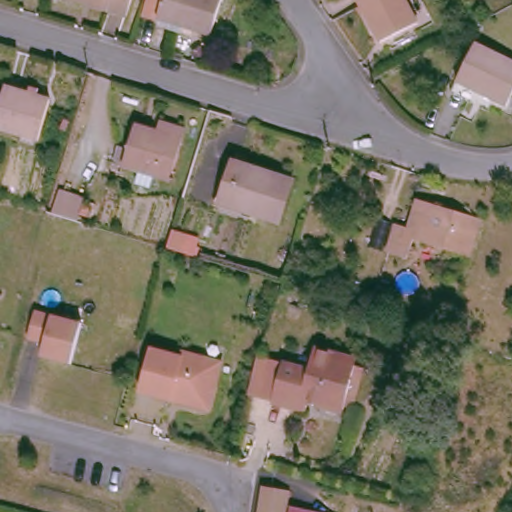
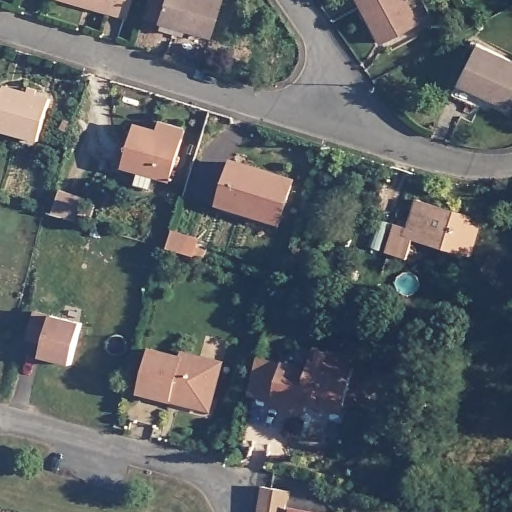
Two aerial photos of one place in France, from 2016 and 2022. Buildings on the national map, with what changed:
unchanged [(75,0),(132,0),(127,17),(75,0)]
unchanged [(149,15),(150,10),(154,0),(227,0),(215,36),(149,15)]
unchanged [(380,42),(358,0),(406,0),(417,22),(380,42)]
unchanged [(512,61),(512,95),(506,107),(457,82),(476,43),(512,61)]
unchanged [(0,130),(0,106),(6,86),(50,99),(38,141),(0,130)]
unchanged [(170,182),(153,177),(149,189),(134,184),(138,172),(122,167),(112,162),(117,145),(128,149),(137,125),(163,134),(167,125),(187,132),(170,182)]
unchanged [(293,181),(280,223),(243,211),(245,206),(222,199),(233,162),(293,181)]
unchanged [(386,252),(395,221),(410,226),(418,195),(448,204),(437,244),(411,236),(405,257),(386,252)]
unchanged [(469,253),(439,245),(437,244),(448,204),(450,204),(481,214),(469,253)]
unchanged [(70,365),(42,357),(45,343),(28,340),(36,311),(82,323),(70,365)]
unchanged [(348,408),(340,406),(321,401),(317,407),(303,403),(301,412),(268,403),(278,362),(304,370),(310,348),(330,354),(332,361),(350,366),(359,368),(348,408)]
unchanged [(202,408),(180,402),(181,397),(173,396),(172,401),(140,392),(152,349),(182,357),(184,352),(222,362),(214,391),(209,411),(202,408)]
unchanged [(268,403),(244,397),(255,356),(278,362),(268,403)]
unchanged [(287,512),(258,512),(262,487),(290,491),(287,512)]
unchanged [(314,512),(291,512),(292,508),(314,512)]

